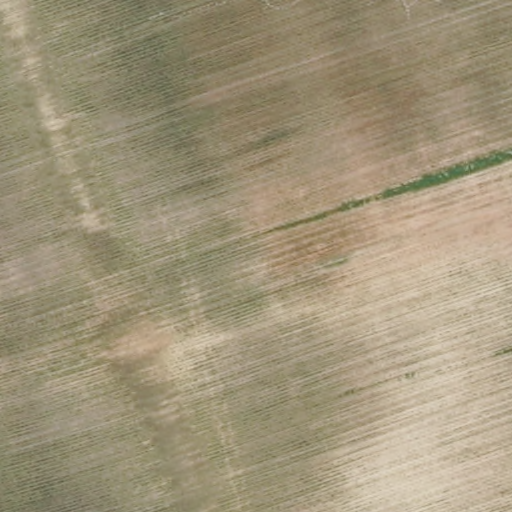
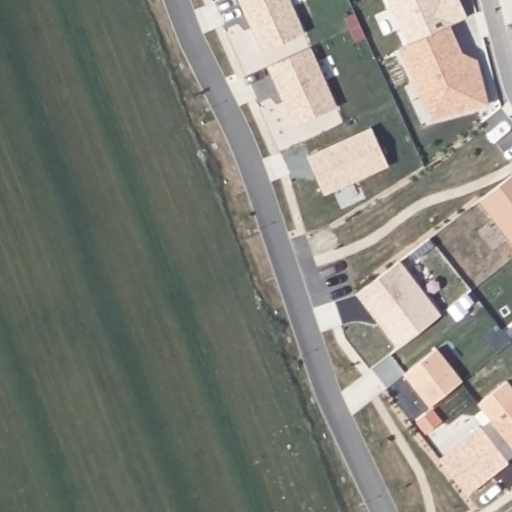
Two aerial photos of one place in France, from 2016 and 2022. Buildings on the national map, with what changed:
new [(304,36),(261,54),(237,0),(288,0),(304,36)]
new [(467,20),(450,28),(407,47),(387,0),(458,0),(467,20)]
new [(357,44),(351,31),(345,19),(355,15),(360,27),(366,40),(357,44)]
new [(412,83),(398,51),(407,47),(450,28),(461,55),(476,62),(488,107),(460,114),(430,122),(412,83)]
new [(310,50),(336,109),(293,128),(267,69),(310,50)]
new [(371,130),(388,167),(325,196),(307,158),(371,130)]
new [(512,178),(512,246),(478,203),(512,178)]
new [(398,264),(440,317),(397,350),(355,297),(398,264)]
new [(436,351),(461,383),(429,409),(403,377),(436,351)]
new [(506,383),(512,391),(512,451),(477,406),(506,383)]
new [(480,430),(507,465),(466,497),(439,462),(480,430)]

